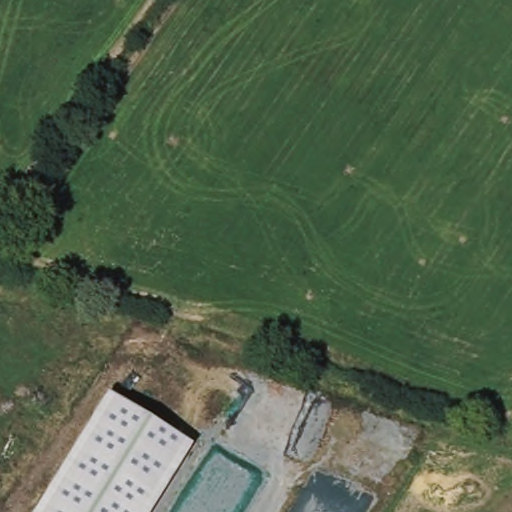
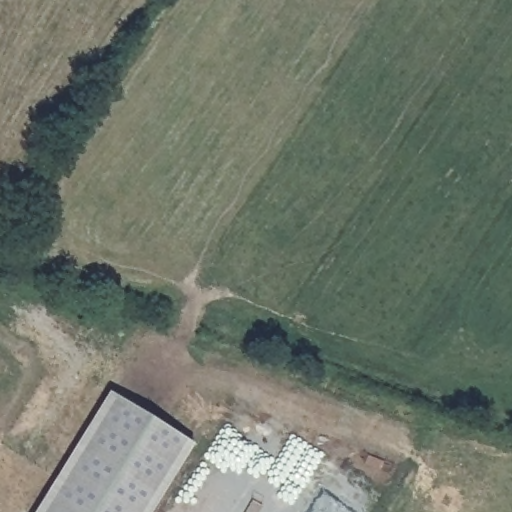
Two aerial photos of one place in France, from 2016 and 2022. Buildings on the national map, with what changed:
unchanged [(109,393),(194,443),(151,512),(35,512),(109,393)]

